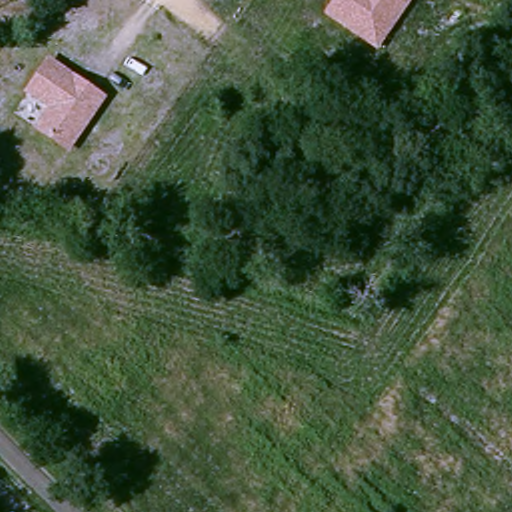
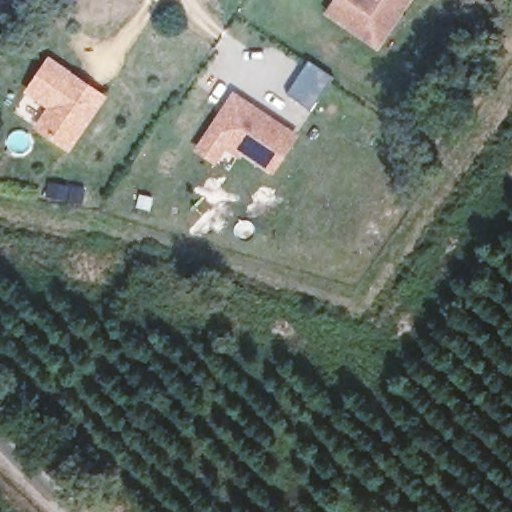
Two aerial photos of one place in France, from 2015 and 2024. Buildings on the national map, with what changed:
unchanged [(375,51),(321,14),(331,0),(412,0),(375,51)]
unchanged [(107,96),(67,153),(30,127),(44,108),(24,94),(47,56),(107,96)]
new [(271,174),(227,149),(214,165),(193,150),(233,91),(299,135),(271,174)]

